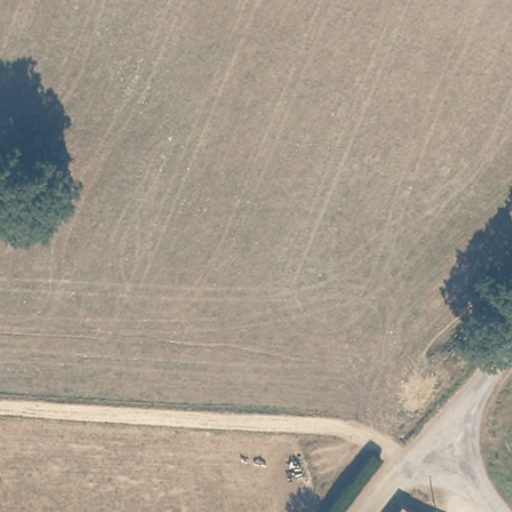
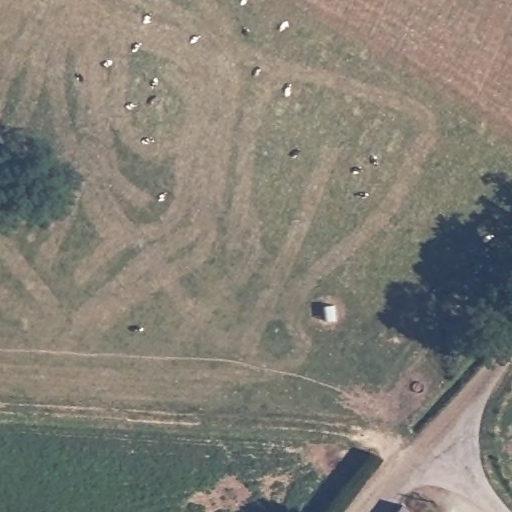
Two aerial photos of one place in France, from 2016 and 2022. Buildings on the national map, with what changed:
unchanged [(421,512),(399,512),(407,501),(421,512)]

